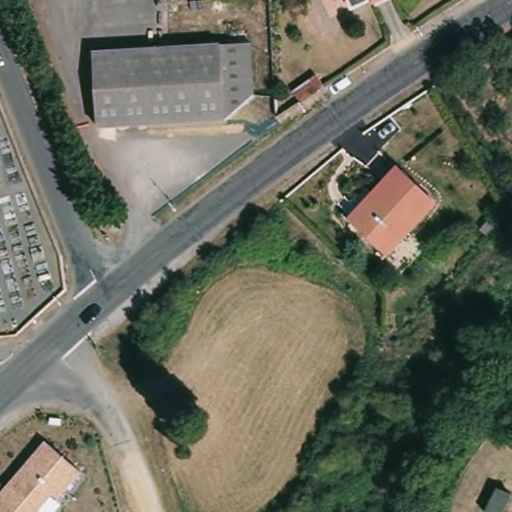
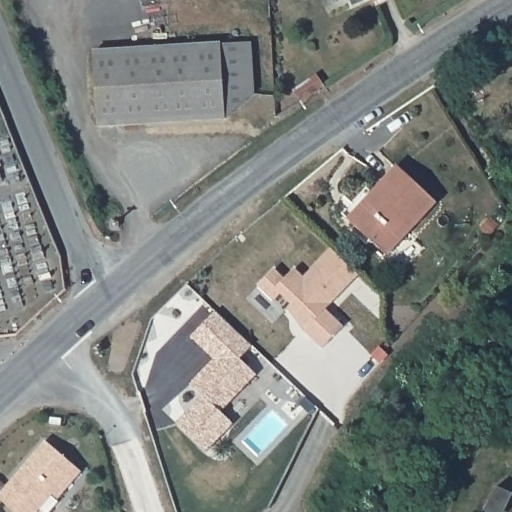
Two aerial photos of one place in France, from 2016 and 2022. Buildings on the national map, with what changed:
unchanged [(350,9),(346,0),(370,0),(350,9)]
unchanged [(371,2),(370,0),(375,0),(371,2)]
unchanged [(249,43),(252,96),(224,120),(96,128),(91,53),(249,43)]
unchanged [(316,87),(294,103),(286,92),(308,76),(316,87)]
unchanged [(382,255),(349,224),(372,199),(370,197),(397,169),(432,202),(382,255)]
new [(295,303),(284,293),(277,301),(261,286),(278,268),(288,278),(298,268),(307,277),(334,247),(362,273),(329,308),(348,326),(327,347),(308,330),(292,307),(295,303)]
new [(192,385),(216,360),(193,338),(218,312),(242,335),(254,347),(242,360),(251,368),(258,376),(245,390),(223,412),(235,425),(209,452),(179,424),(205,397),(192,385)]
unchanged [(55,421),(55,427),(44,426),(44,420),(55,421)]
unchanged [(52,495),(39,512),(14,512),(0,500),(0,492),(45,440),(81,471),(58,501),(52,495)]

